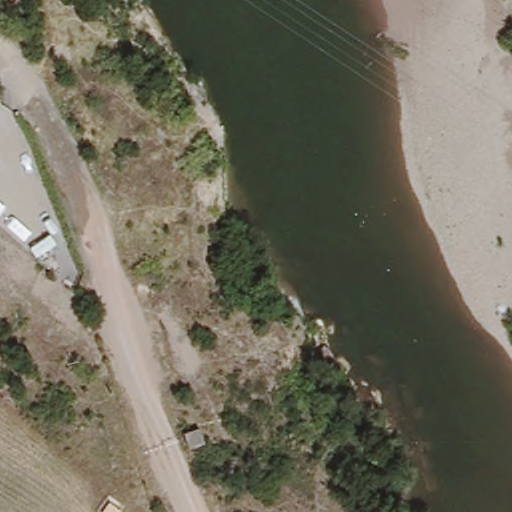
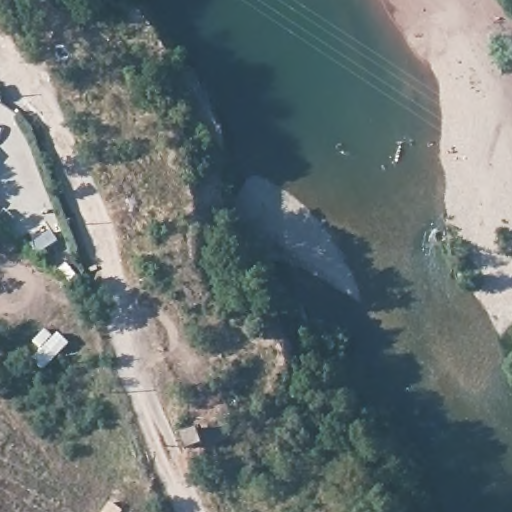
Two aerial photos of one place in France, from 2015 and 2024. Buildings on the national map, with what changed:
unchanged [(203,448),(185,454),(180,439),(195,432),(203,448)]

